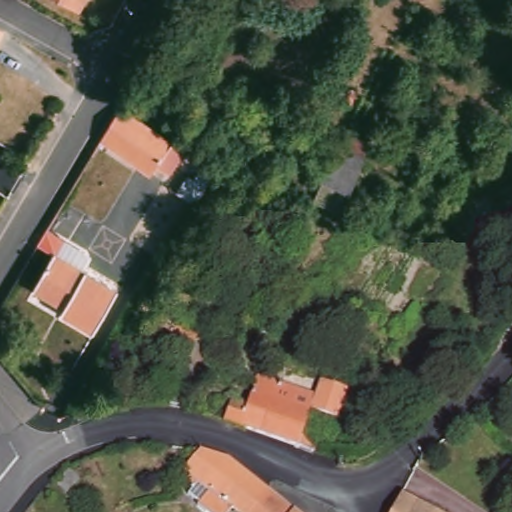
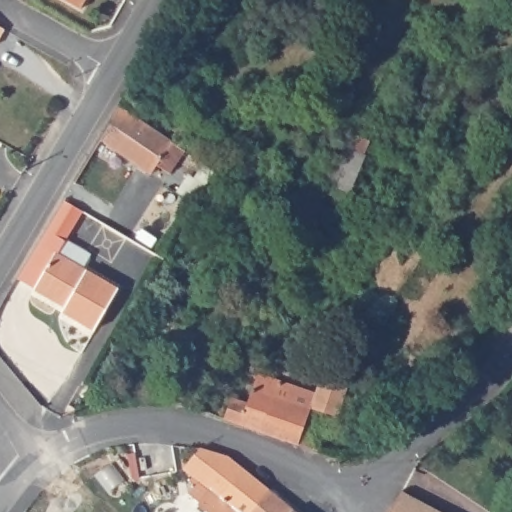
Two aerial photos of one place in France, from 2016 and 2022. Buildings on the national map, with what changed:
unchanged [(63,0),(85,0),(79,10),(63,0)]
unchanged [(4,30),(0,39),(0,28),(4,30)]
unchanged [(151,165),(145,175),(112,152),(114,147),(106,142),(125,114),(130,117),(134,120),(160,137),(181,152),(165,175),(151,165)]
unchanged [(313,202),(337,143),(367,155),(342,215),(313,202)]
unchanged [(45,230),(86,254),(89,260),(84,270),(119,291),(95,331),(63,311),(66,307),(35,288),(56,255),(37,244),(45,230)]
unchanged [(199,335),(189,353),(171,343),(181,325),(199,335)]
unchanged [(232,398),(248,405),(259,375),(315,395),(321,379),(348,388),(338,417),(330,415),(318,452),(282,440),(224,420),(232,398)]
unchanged [(227,457),(267,490),(250,512),(201,512),(195,506),(196,505),(186,495),(193,487),(187,483),(191,478),(181,470),(200,448),(227,457)]
unchanged [(64,492),(55,481),(69,469),(79,480),(64,492)]
unchanged [(466,512),(391,512),(408,480),(466,512)]
unchanged [(267,490),(294,512),(250,512),(267,490)]

